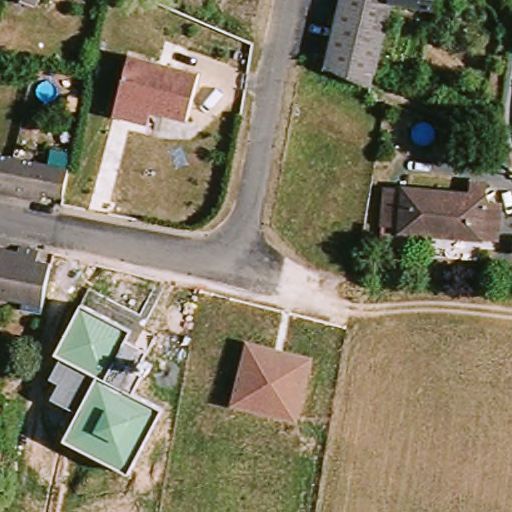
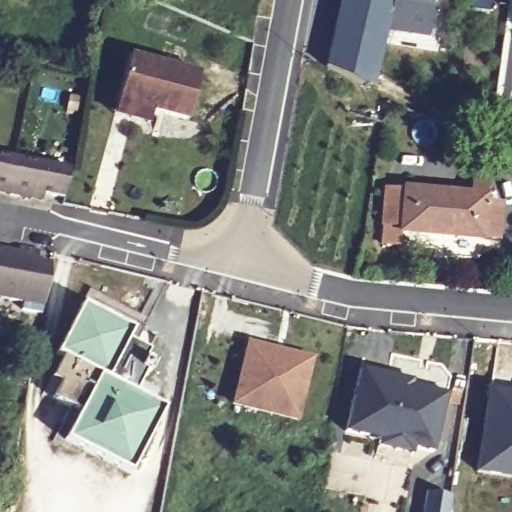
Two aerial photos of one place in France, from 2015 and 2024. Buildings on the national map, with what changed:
unchanged [(27,0),(37,0),(36,4),(27,0)]
unchanged [(390,5),(370,89),(360,86),(328,72),(343,0),(433,0),(431,13),(390,5)]
unchanged [(129,54),(199,73),(186,119),(151,109),(148,121),(113,112),(116,100),(129,54)]
unchanged [(27,203),(0,198),(0,159),(68,172),(62,202),(41,198),(40,205),(27,203)]
unchanged [(497,211),(495,244),(399,236),(400,230),(382,229),(385,194),(470,200),(470,186),(486,187),(485,201),(485,210),(497,211)]
unchanged [(20,255),(20,253),(39,256),(38,263),(37,265),(50,268),(42,311),(0,304),(0,252),(20,255)]
unchanged [(131,329),(126,340),(148,351),(142,361),(149,364),(133,394),(164,409),(130,474),(64,440),(78,413),(51,398),(59,382),(50,377),(62,356),(56,353),(81,305),(131,329)]
unchanged [(246,339),(314,355),(300,422),(231,406),(246,339)]
new [(360,368),(412,380),(411,385),(446,393),(433,452),(413,449),(412,456),(376,448),(378,441),(344,433),(360,368)]
new [(512,394),(512,477),(477,472),(490,391),(512,394)]
new [(425,492),(451,496),(448,512),(422,512),(425,492)]

